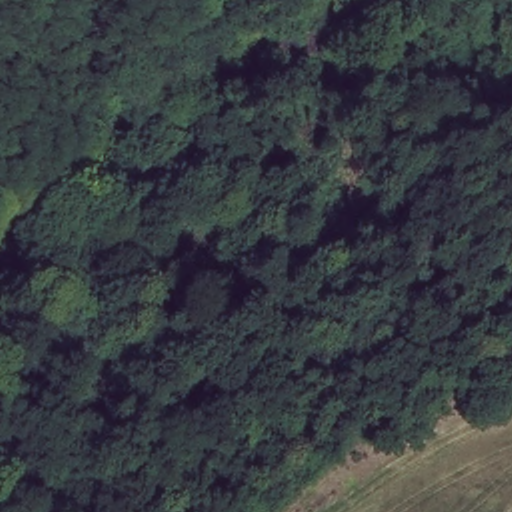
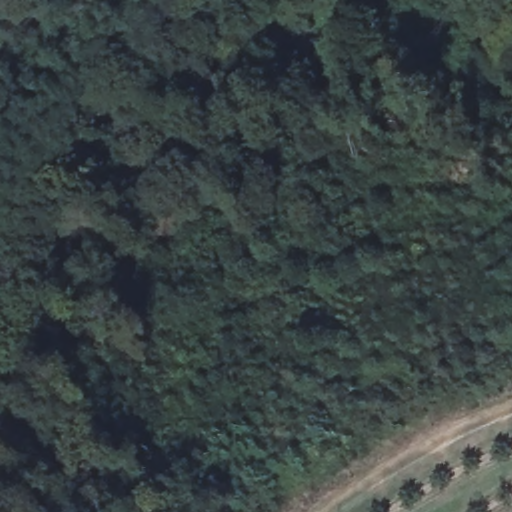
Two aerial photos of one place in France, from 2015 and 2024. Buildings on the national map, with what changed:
[]

